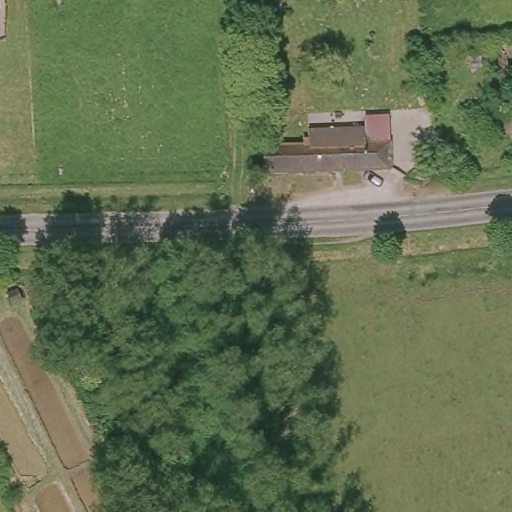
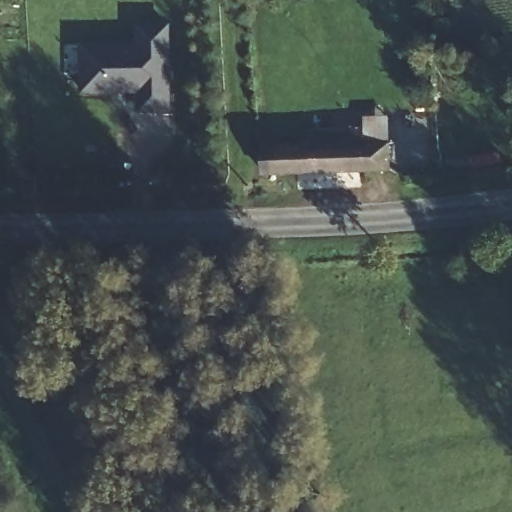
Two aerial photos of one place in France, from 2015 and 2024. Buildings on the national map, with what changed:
new [(173,111),(139,112),(139,93),(81,92),(81,42),(136,41),(137,22),(171,22),(173,111)]
unchanged [(313,151),(313,127),(369,125),(372,147),(401,147),(404,174),(282,177),(279,152),(313,151)]

